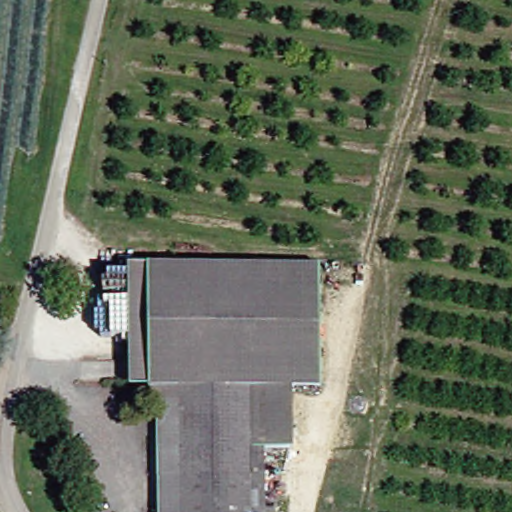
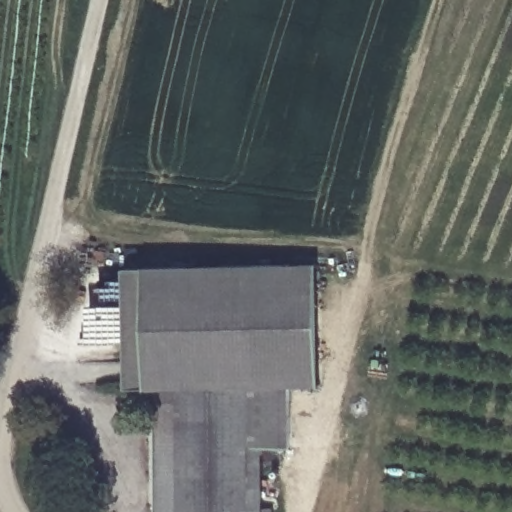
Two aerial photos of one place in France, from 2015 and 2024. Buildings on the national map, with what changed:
unchanged [(313,385),(302,385),(282,385),(255,385),(252,266),(312,264),(312,270),(313,348),(313,385)]
unchanged [(259,506),(150,508),(147,388),(137,388),(137,266),(252,266),(255,385),(282,385),(282,447),(257,448),(257,463),(259,506)]
unchanged [(259,506),(260,512),(150,512),(150,508),(259,506)]

